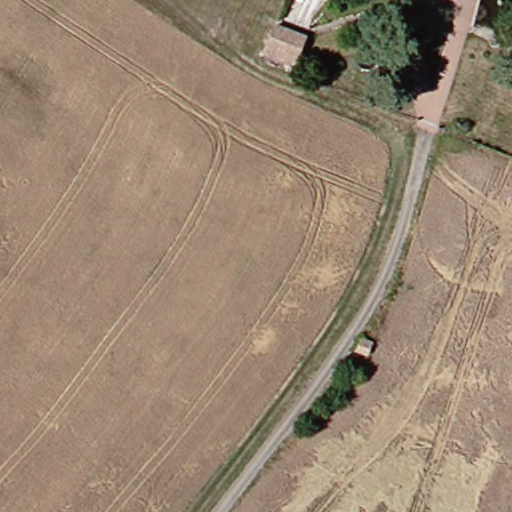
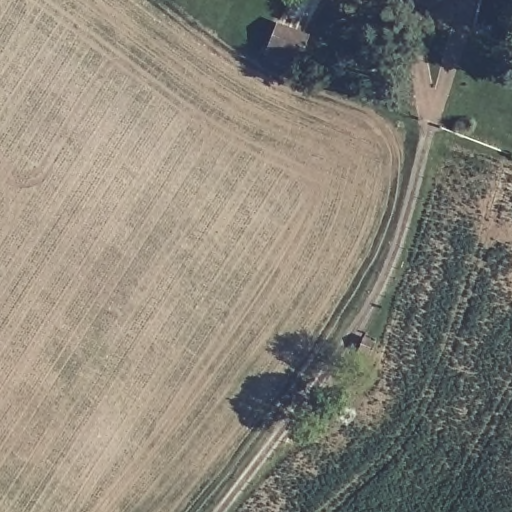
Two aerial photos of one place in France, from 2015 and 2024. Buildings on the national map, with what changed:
unchanged [(290,74),(278,70),(277,74),(257,64),(259,60),(256,59),(270,24),(305,37),(290,74)]

